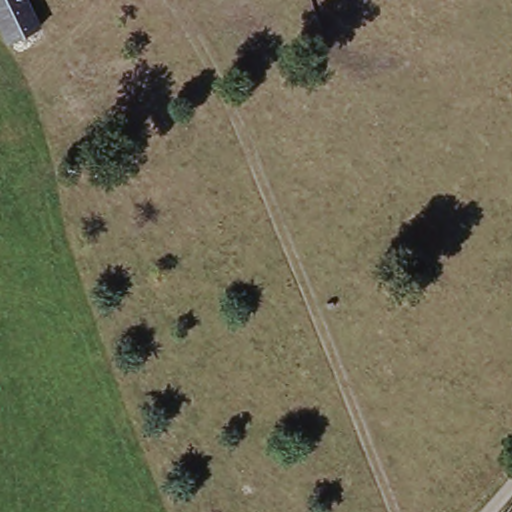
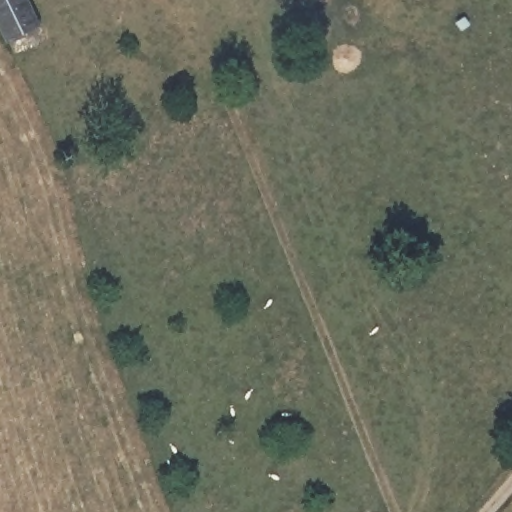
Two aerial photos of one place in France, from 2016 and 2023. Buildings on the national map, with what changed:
unchanged [(29,0),(38,23),(5,36),(0,22),(0,0),(29,0)]

